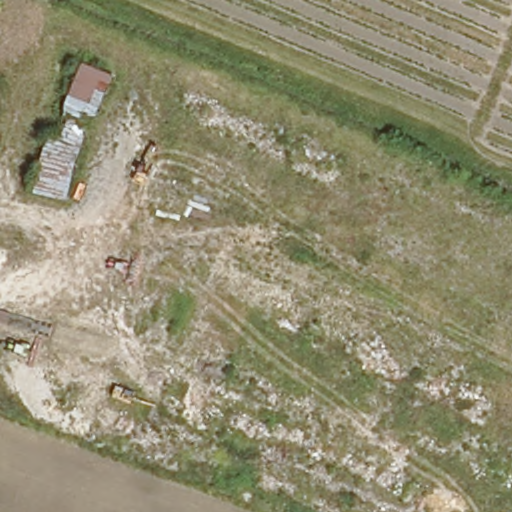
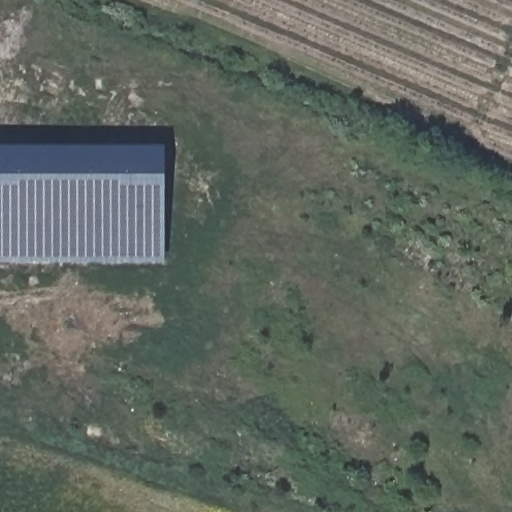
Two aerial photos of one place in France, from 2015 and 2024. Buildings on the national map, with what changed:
demolished [(116,77),(82,162),(47,148),(80,66),(116,77)]
new [(162,150),(164,260),(0,260),(0,150),(162,150)]

